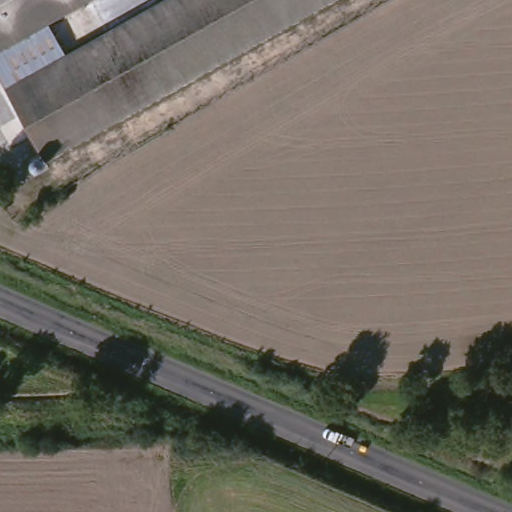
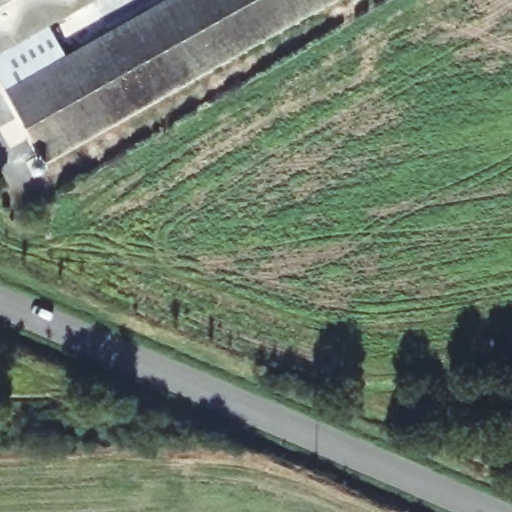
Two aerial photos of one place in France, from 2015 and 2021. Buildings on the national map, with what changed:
unchanged [(0,72),(0,0),(94,0),(57,20),(75,53),(173,0),(344,0),(46,161),(0,72)]

